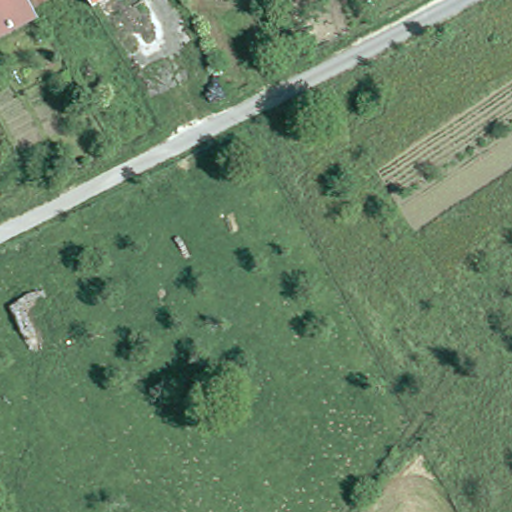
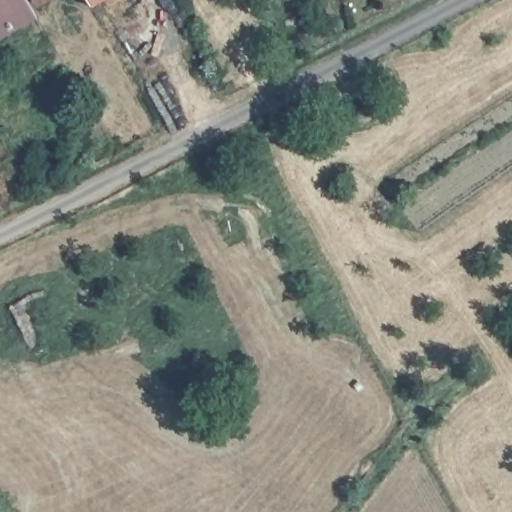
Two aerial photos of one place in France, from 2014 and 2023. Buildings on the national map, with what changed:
unchanged [(0,42),(0,0),(50,0),(51,3),(37,12),(41,20),(0,42)]
unchanged [(118,0),(98,10),(92,0),(118,0)]

